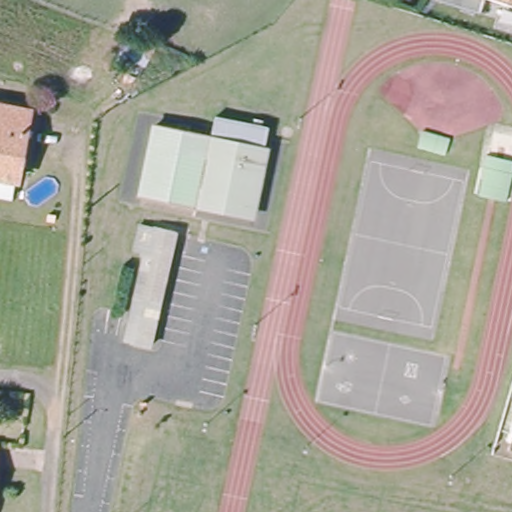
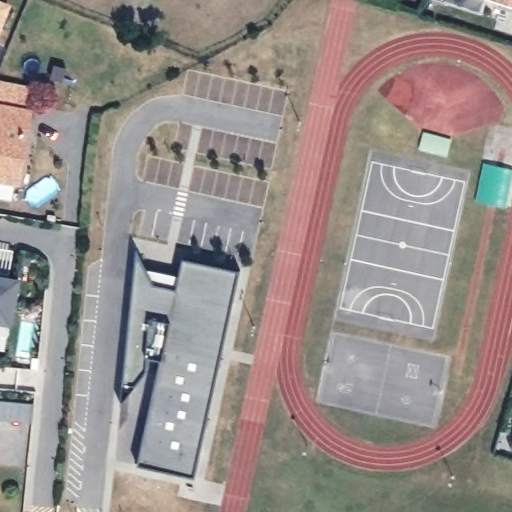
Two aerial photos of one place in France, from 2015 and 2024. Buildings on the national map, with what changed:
new [(0,34),(0,0),(5,0),(11,3),(0,34)]
unchanged [(512,0),(512,6),(494,0),(512,0)]
new [(37,87),(32,111),(0,104),(0,80),(37,87)]
unchanged [(16,180),(0,177),(0,104),(32,111),(16,180)]
demolished [(141,193),(158,123),(211,135),(216,116),(270,129),(265,149),(268,150),(254,209),(220,201),(219,212),(141,193)]
demolished [(141,253),(127,250),(132,223),(176,231),(158,324),(128,318),(141,253)]
new [(148,269),(180,274),(183,256),(238,272),(195,476),(140,463),(161,358),(146,355),(146,374),(122,399),(135,250),(148,269)]
new [(21,277),(12,324),(9,336),(0,334),(0,273),(21,277)]

